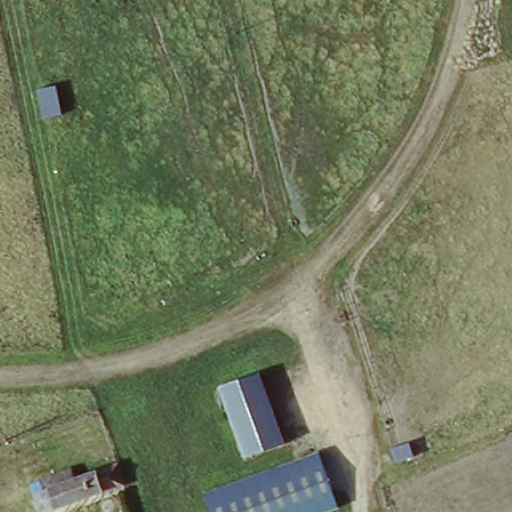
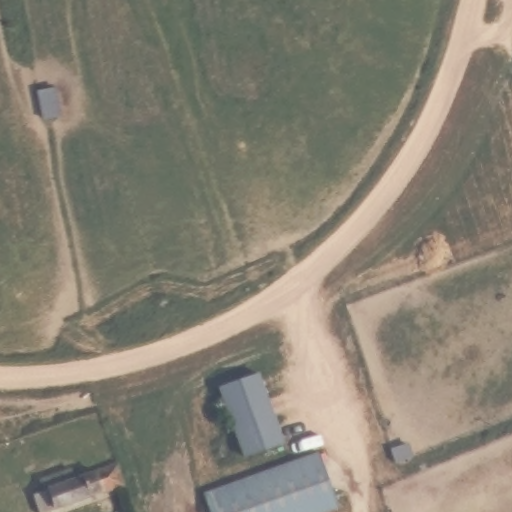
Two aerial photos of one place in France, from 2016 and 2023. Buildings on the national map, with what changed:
unchanged [(31,89),(50,85),(55,113),(37,117),(31,89)]
unchanged [(213,385),(252,373),(277,442),(237,455),(213,385)]
unchanged [(384,447),(402,441),(407,456),(389,462),(384,447)]
unchanged [(312,451),(333,508),(323,512),(206,512),(198,491),(312,451)]
unchanged [(42,506),(34,484),(42,482),(38,470),(73,460),(78,471),(115,459),(122,482),(42,506)]

